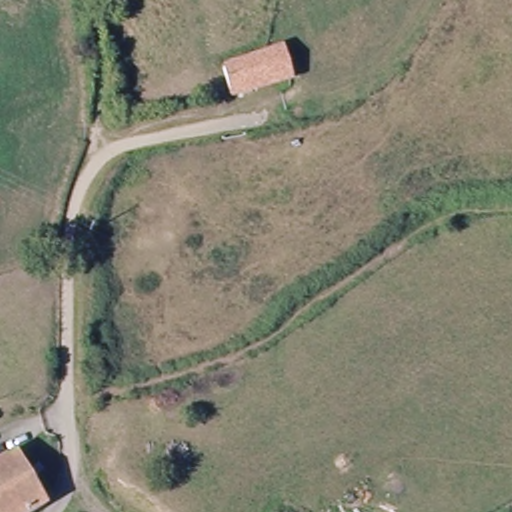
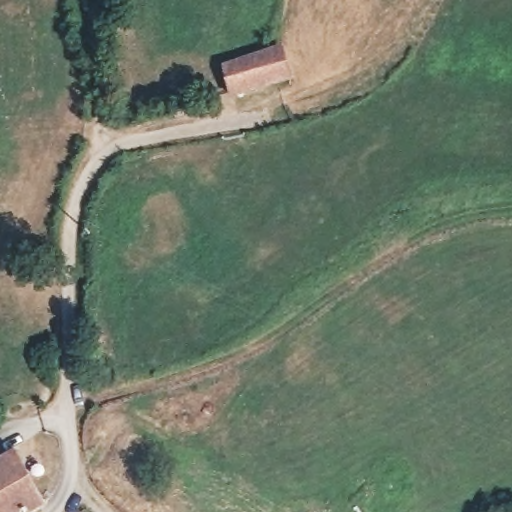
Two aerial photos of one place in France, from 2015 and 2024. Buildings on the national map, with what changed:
unchanged [(229,70),(273,52),(284,79),(240,98),(229,70)]
unchanged [(0,512),(0,452),(6,449),(34,497),(9,512),(0,512)]

